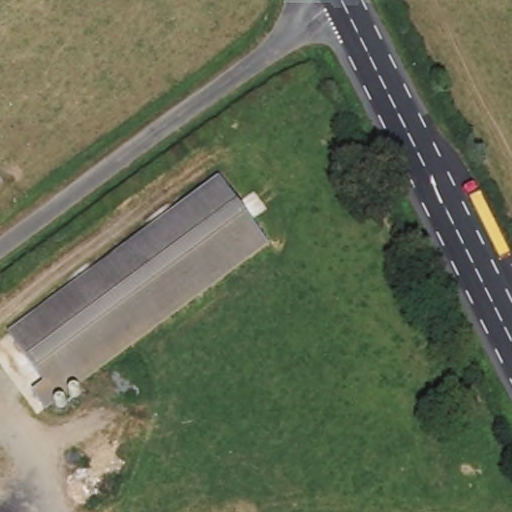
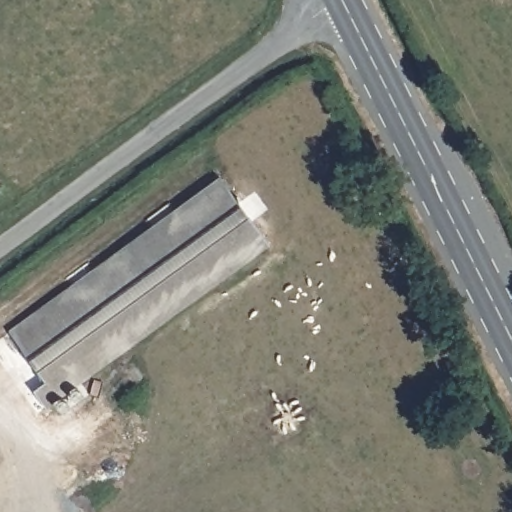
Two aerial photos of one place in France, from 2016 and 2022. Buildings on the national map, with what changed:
unchanged [(49,413),(34,395),(43,389),(6,333),(217,179),(272,250),(49,413)]

